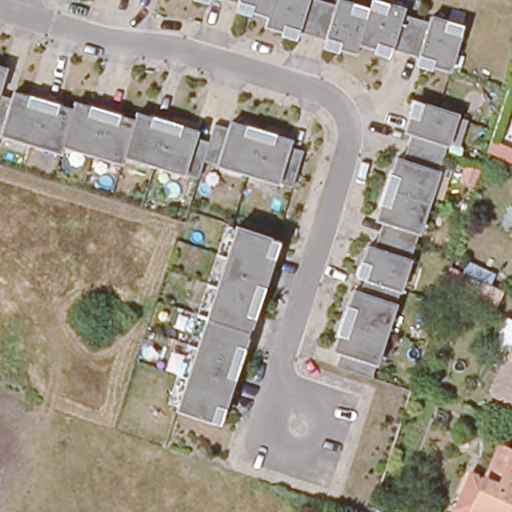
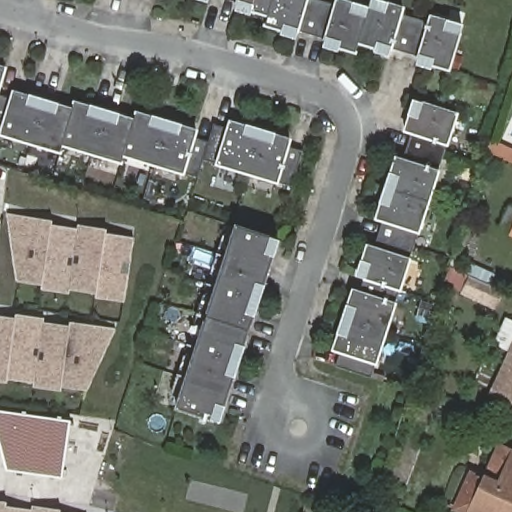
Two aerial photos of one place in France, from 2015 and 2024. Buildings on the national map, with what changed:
unchanged [(333,3),(334,0),(344,0),(367,6),(368,0),(382,0),(404,5),(403,13),(426,20),(428,15),(461,25),(447,70),(427,65),(430,58),(377,42),(375,46),(356,41),(353,49),(334,45),(335,40),(264,21),(267,11),(227,0),(322,0),(333,3)]
unchanged [(0,73),(0,64),(2,64),(0,73)]
unchanged [(511,80),(512,78),(512,80),(511,80)]
unchanged [(69,102),(131,119),(134,114),(195,131),(195,136),(217,143),(227,117),(289,136),(286,146),(301,150),(291,184),(203,157),(196,175),(121,153),(118,158),(60,142),(56,148),(0,135),(0,122),(3,113),(0,112),(0,89),(66,108),(69,102)]
unchanged [(455,114),(368,374),(335,365),(340,352),(330,348),(364,243),(374,246),(381,221),(371,218),(393,157),(404,160),(412,135),(402,132),(406,112),(412,114),(417,101),(455,114)]
new [(98,288),(99,284),(71,279),(71,285),(43,281),(44,276),(16,271),(10,214),(26,222),(52,224),(51,229),(78,234),(80,229),(106,232),(105,237),(133,241),(125,293),(98,288)]
unchanged [(268,235),(263,251),(270,254),(261,286),(253,284),(245,309),(252,312),(240,347),(231,344),(224,371),(231,374),(221,408),(212,404),(208,420),(173,410),(233,224),(268,235)]
unchanged [(502,290),(494,306),(464,292),(471,276),(502,290)]
new [(65,377),(64,382),(36,378),(38,372),(11,368),(11,373),(0,371),(0,320),(15,322),(16,317),(45,322),(44,327),(69,331),(70,327),(75,328),(93,330),(116,328),(91,382),(65,377)]
unchanged [(490,400),(512,353),(512,410),(490,400)]
new [(0,445),(0,410),(71,420),(63,477),(7,469),(0,445)]
unchanged [(485,485),(501,451),(512,456),(512,512),(455,512),(470,478),(485,485)]
new [(6,505),(32,510),(33,506),(61,509),(61,512),(0,512),(0,502),(6,502),(6,505)]

